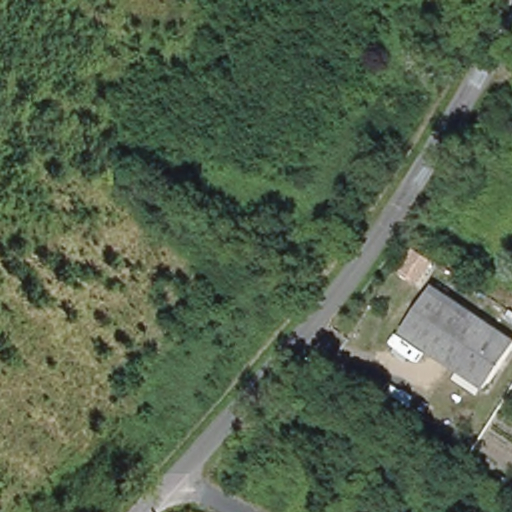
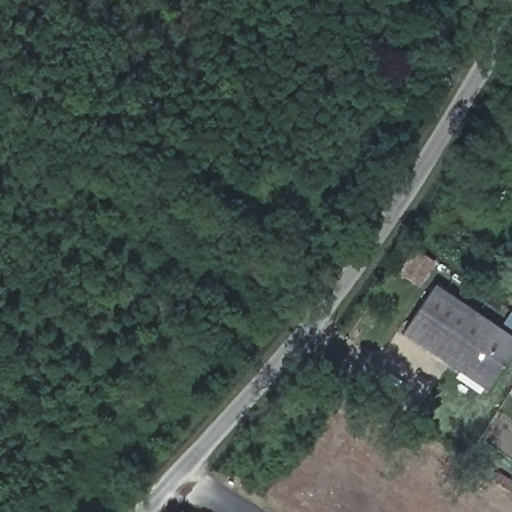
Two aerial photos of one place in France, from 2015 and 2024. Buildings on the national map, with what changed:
unchanged [(438,262),(422,285),(397,271),(410,247),(438,262)]
unchanged [(398,332),(431,282),(512,335),(512,349),(482,390),(398,332)]
unchanged [(512,311),(512,331),(504,325),(512,311)]

